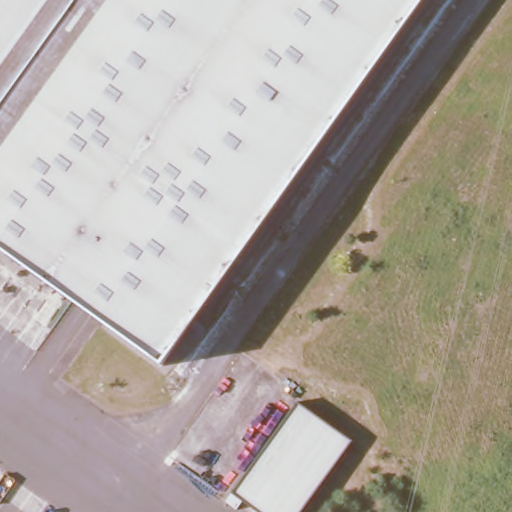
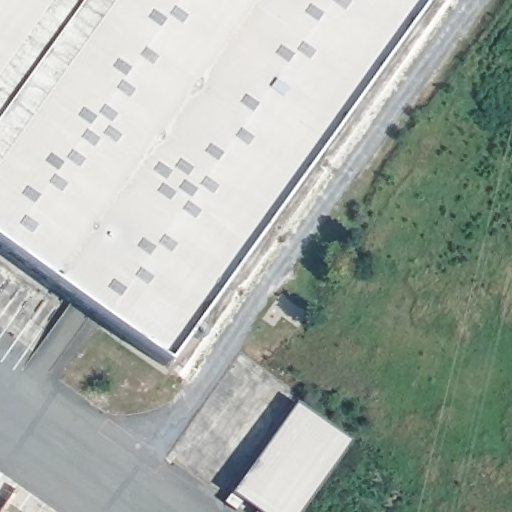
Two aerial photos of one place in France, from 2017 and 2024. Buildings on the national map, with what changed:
unchanged [(0,252),(0,0),(425,0),(161,367),(0,252)]
unchanged [(352,441),(300,512),(255,512),(230,494),(295,403),(352,441)]

